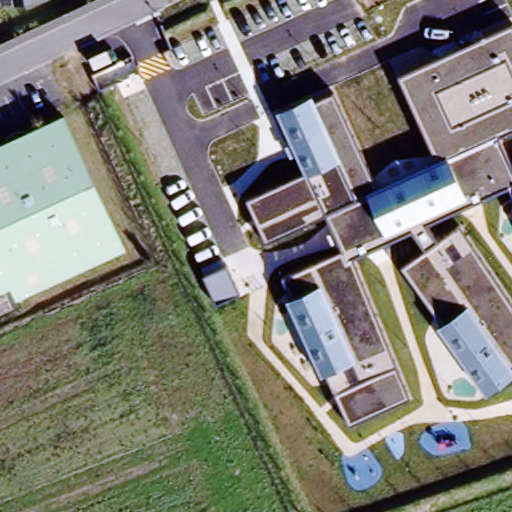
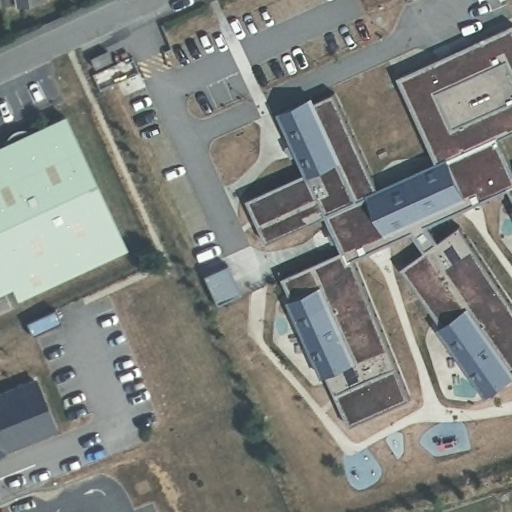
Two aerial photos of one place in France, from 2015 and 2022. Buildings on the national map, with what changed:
unchanged [(0,0),(47,0),(47,1),(0,8),(0,0)]
unchanged [(512,25),(512,130),(497,137),(512,169),(512,193),(510,188),(429,225),(440,241),(460,227),(512,303),(512,378),(487,396),(437,327),(442,323),(403,268),(425,252),(412,232),(352,259),(410,397),(351,423),(327,376),(321,377),(287,301),(291,298),(283,277),(343,252),(338,242),(331,245),(327,234),(333,231),(326,215),(268,242),(248,201),(306,176),(297,155),(290,158),(285,147),(290,145),(277,113),(312,98),(314,102),(334,94),(378,189),(437,161),(399,76),(512,25)]
unchanged [(16,302),(10,288),(0,293),(0,147),(65,117),(126,251),(16,302)]
unchanged [(241,293),(218,305),(205,276),(228,265),(241,293)]
new [(51,432),(0,452),(0,394),(31,382),(51,432)]

